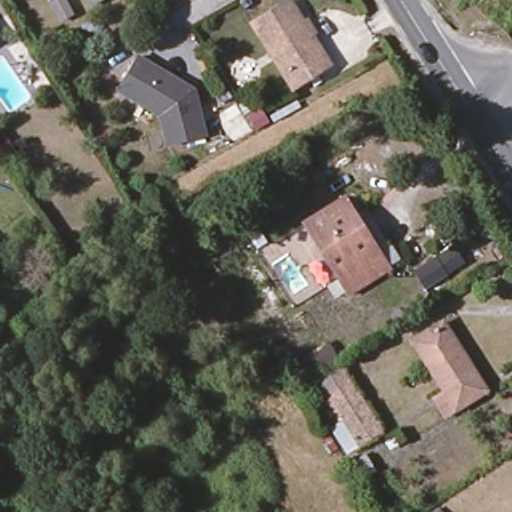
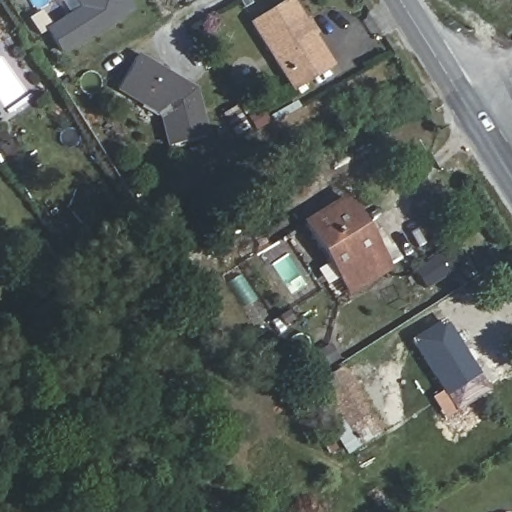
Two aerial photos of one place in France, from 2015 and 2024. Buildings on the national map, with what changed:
new [(47,31),(82,9),(76,0),(122,0),(129,10),(60,53),(47,31)]
demolished [(86,0),(99,0),(89,5),(86,0)]
unchanged [(251,24),(288,0),(330,65),(292,89),(251,24)]
unchanged [(167,145),(159,117),(116,93),(140,53),(197,88),(209,135),(167,145)]
unchanged [(238,110),(227,117),(220,106),(223,104),(217,94),(225,89),(238,110)]
unchanged [(362,284),(354,269),(336,279),(305,222),(346,200),(356,218),(368,239),(386,272),(362,284)]
unchanged [(425,289),(413,271),(452,245),(465,264),(425,289)]
unchanged [(482,392),(466,403),(460,391),(450,397),(417,344),(441,326),(482,392)]
unchanged [(352,382),(374,422),(348,441),(324,397),(352,382)]

